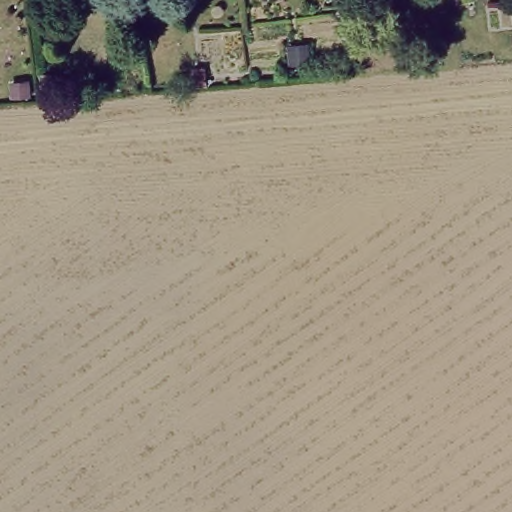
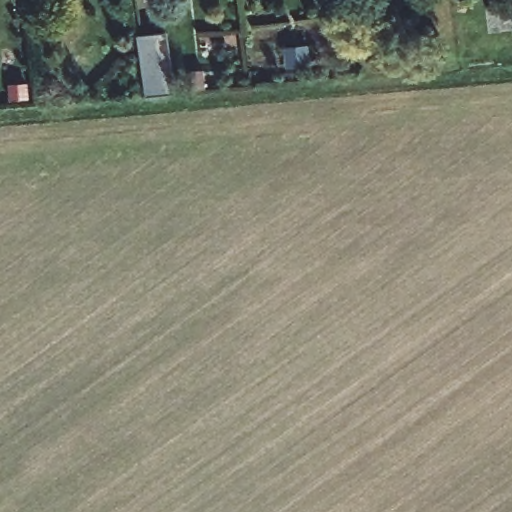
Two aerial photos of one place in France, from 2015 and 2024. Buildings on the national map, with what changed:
new [(141,35),(170,31),(176,93),(146,95),(141,35)]

